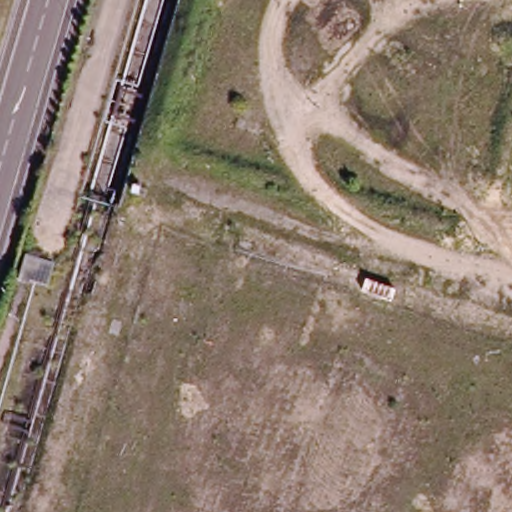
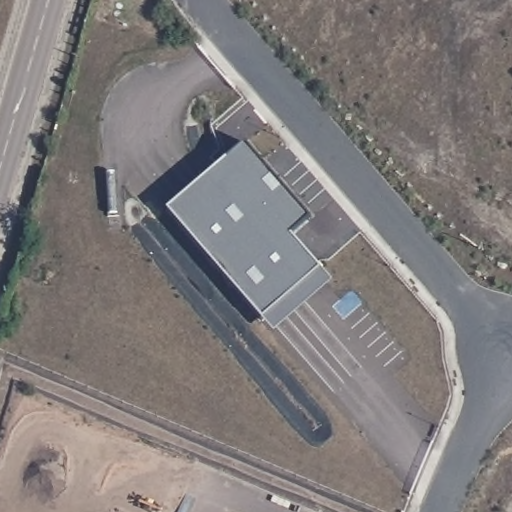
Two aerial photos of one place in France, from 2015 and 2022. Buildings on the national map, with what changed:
new [(314,214),(293,231),(322,265),(264,316),(170,206),(248,137),(314,214)]
new [(322,265),(335,278),(275,330),(264,316),(322,265)]

